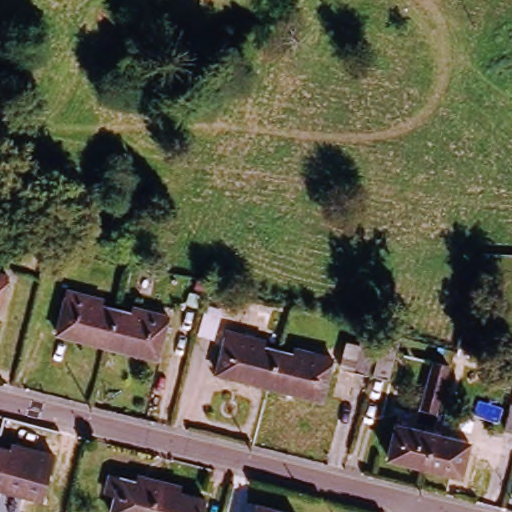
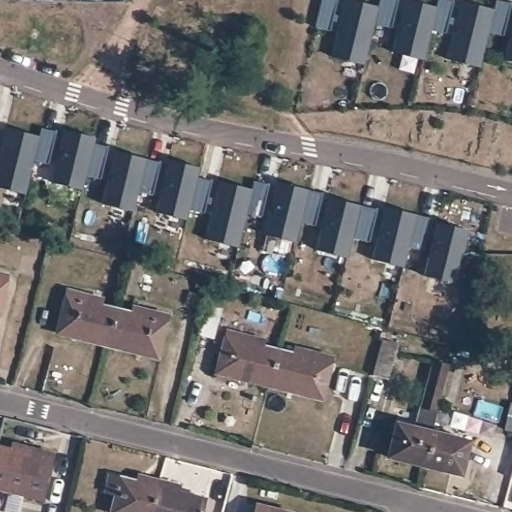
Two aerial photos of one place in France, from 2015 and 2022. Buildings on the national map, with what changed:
new [(338,0),(331,31),(315,28),(322,0),(338,0)]
new [(380,0),(399,0),(392,28),(374,24),(364,65),(331,56),(345,0),(350,0),(379,7),(380,0)]
new [(438,0),(448,0),(454,1),(446,34),(431,30),(424,60),(393,53),(406,0),(437,8),(438,0)]
new [(494,10),(497,1),(512,4),(504,36),(489,33),(480,68),(447,60),(461,2),(494,10)]
new [(512,30),(512,63),(504,61),(512,30)]
new [(39,137),(41,129),(56,133),(48,165),(33,161),(24,194),(0,188),(0,151),(6,129),(39,137)]
new [(101,180),(85,176),(82,190),(51,183),(64,130),(95,138),(93,144),(109,148),(101,180)]
new [(146,159),(161,163),(153,195),(138,191),(133,212),(101,204),(114,151),(146,159)]
new [(203,214),(188,210),(186,221),(155,213),(168,160),(199,168),(197,178),(212,182),(203,214)]
new [(251,190),(254,182),(269,186),(261,218),(246,214),(237,247),(204,239),(219,182),(251,190)]
new [(308,190),(294,243),(264,235),(277,183),(308,190)]
new [(323,194),(315,226),(300,223),(308,190),(323,194)]
new [(359,206),(378,210),(369,243),(351,238),(346,258),(316,251),(329,198),(359,206)]
new [(416,215),(431,219),(423,251),(408,247),(403,268),(372,260),(385,208),(416,215)]
new [(438,223),(468,231),(454,283),(424,276),(438,223)]
unchanged [(7,280),(0,307),(0,278),(7,280)]
unchanged [(108,344),(58,332),(68,290),(102,298),(100,304),(116,308),(108,344)]
unchanged [(131,312),(133,306),(168,315),(157,357),(108,344),(116,308),(131,312)]
unchanged [(207,309),(224,313),(216,345),(198,341),(207,309)]
unchanged [(268,385),(216,372),(226,331),(265,341),(264,345),(279,349),(268,385)]
unchanged [(381,348),(397,352),(389,381),(374,377),(381,348)]
unchanged [(296,354),(298,349),(334,358),(322,399),(268,385),(279,349),(296,354)]
unchanged [(423,391),(433,350),(453,355),(442,396),(423,391)]
unchanged [(512,400),(512,432),(501,429),(509,400),(512,400)]
unchanged [(419,465),(383,457),(393,422),(428,430),(419,465)]
unchanged [(465,439),(456,474),(419,465),(428,430),(465,439)]
unchanged [(10,449),(11,443),(54,454),(43,500),(0,489),(0,446),(10,449)]
unchanged [(108,495),(97,492),(102,475),(128,482),(129,475),(149,481),(141,512),(102,512),(108,495)]
unchanged [(149,481),(171,486),(169,493),(198,500),(194,512),(141,512),(149,481)]
unchanged [(254,505),(284,512),(253,512),(254,505)]

